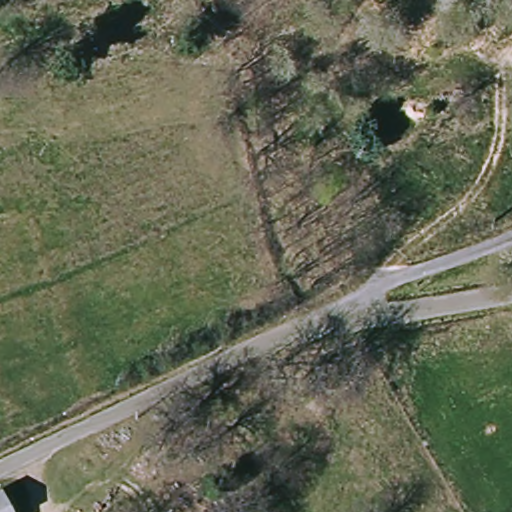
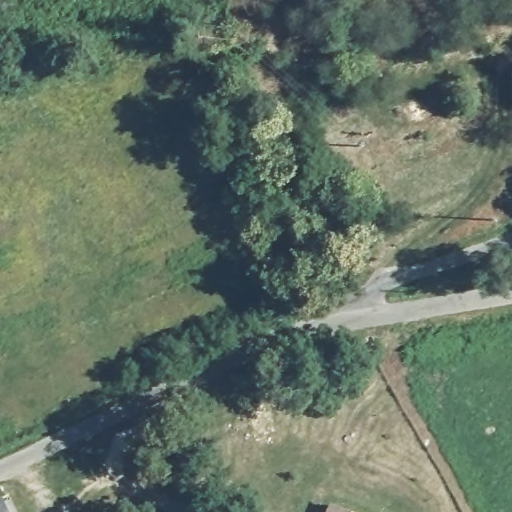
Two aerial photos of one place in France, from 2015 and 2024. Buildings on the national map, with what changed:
unchanged [(23,512),(0,512),(0,493),(13,488),(23,512)]
new [(355,512),(326,512),(331,502),(355,512)]

